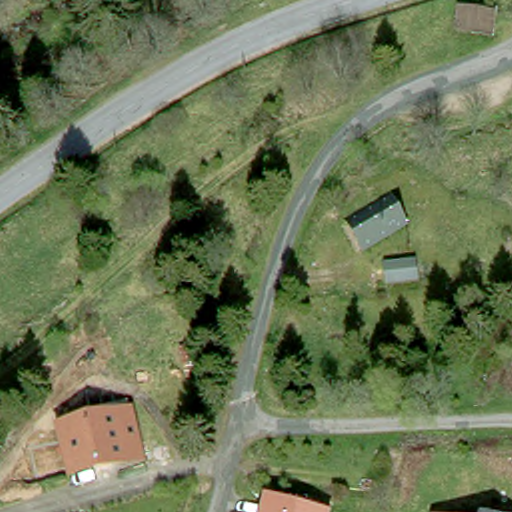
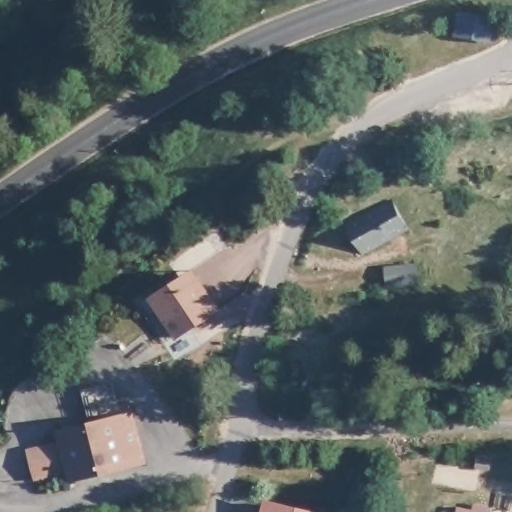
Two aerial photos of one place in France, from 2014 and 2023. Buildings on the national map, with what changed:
unchanged [(491,40),(457,37),(460,16),(493,19),(491,40)]
unchanged [(353,224),(393,202),(412,231),(371,255),(353,224)]
unchanged [(417,267),(419,286),(389,290),(388,270),(417,267)]
new [(223,311),(176,340),(151,299),(197,269),(223,311)]
unchanged [(139,463),(83,478),(71,436),(128,421),(139,463)]
new [(56,447),(61,477),(37,481),(31,453),(56,447)]
unchanged [(268,509),(285,512),(267,512),(268,509)]

